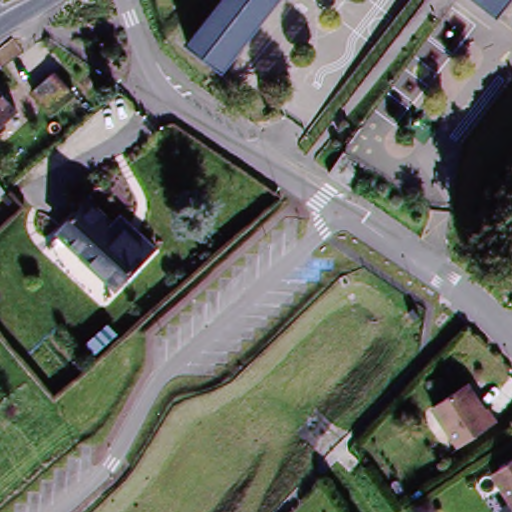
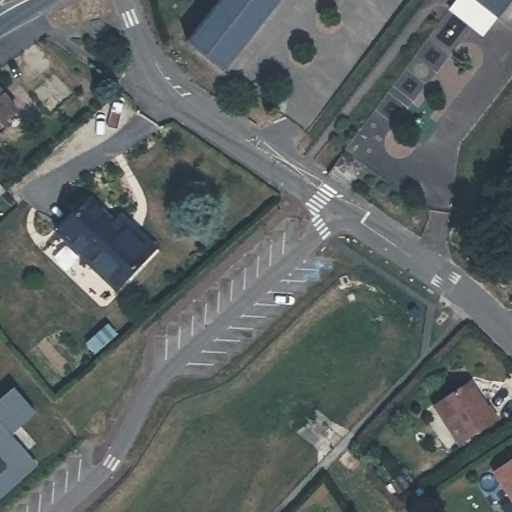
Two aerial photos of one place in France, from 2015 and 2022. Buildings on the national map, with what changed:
unchanged [(185,45),(221,0),(281,0),(223,73),(185,45)]
unchanged [(468,0),(510,0),(495,20),(468,0)]
unchanged [(58,101),(45,76),(72,62),(84,86),(58,101)]
unchanged [(21,119),(0,135),(0,93),(21,119)]
unchanged [(326,172),(344,148),(367,165),(350,189),(326,172)]
new [(7,192),(0,198),(0,185),(7,192)]
unchanged [(87,205),(112,226),(119,219),(153,250),(113,293),(56,240),(87,205)]
unchanged [(462,382),(472,400),(470,402),(475,412),(480,409),(488,423),(451,448),(427,406),(462,382)]
new [(12,386),(33,410),(7,433),(35,463),(0,495),(0,397),(12,386)]
unchanged [(512,462),(512,502),(495,473),(512,462)]

